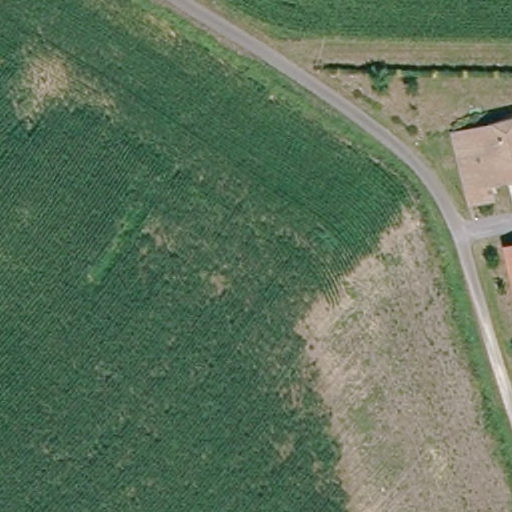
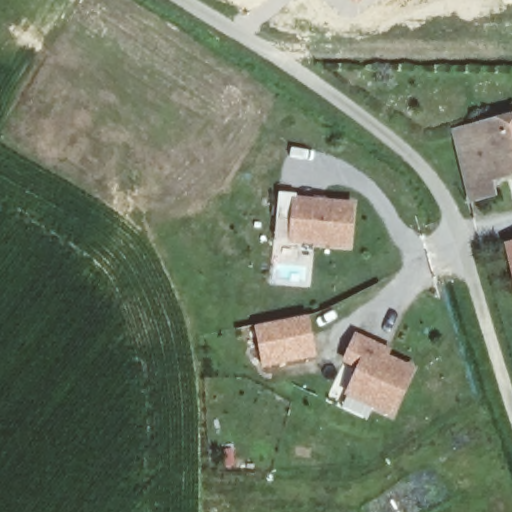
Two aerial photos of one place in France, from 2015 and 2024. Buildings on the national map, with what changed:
new [(348,0),(362,0),(354,7),(348,0)]
unchanged [(512,182),(498,185),(502,208),(476,214),(452,133),(512,117),(512,182)]
new [(296,194),(296,197),(356,202),(352,249),(289,242),(291,220),(277,219),(280,194),(296,194)]
unchanged [(512,240),(512,292),(504,241),(512,240)]
new [(317,357),(263,367),(255,326),(308,315),(317,357)]
new [(392,350),(390,356),(416,367),(394,417),(344,397),(357,368),(342,363),(356,333),(392,350)]

